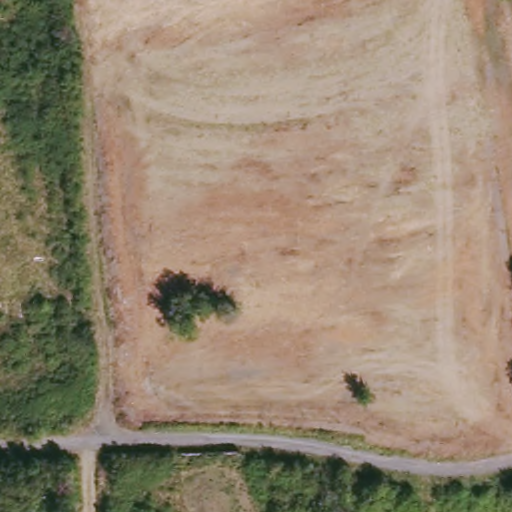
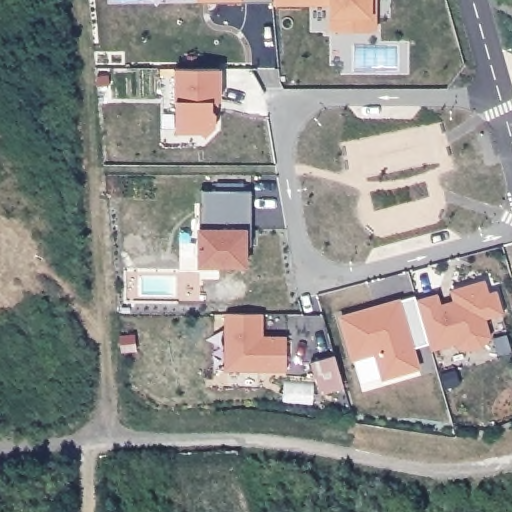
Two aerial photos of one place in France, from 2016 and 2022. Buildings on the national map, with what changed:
new [(225,6),(225,1),(186,5),(186,0),(273,0),(273,1),(225,6)]
new [(273,4),(273,0),(300,0),(300,4),(273,4)]
new [(330,0),(330,4),(300,4),(300,0),(330,0)]
new [(330,30),(330,0),(374,0),(374,30),(330,30)]
new [(216,126),(205,136),(201,132),(175,131),(176,69),(220,69),(220,101),(212,101),(212,110),(216,114),(216,126)]
new [(248,247),(246,270),(196,268),(196,213),(203,213),(203,193),(248,194),(248,247)]
new [(489,337),(481,345),(468,348),(457,346),(456,342),(430,349),(416,301),(436,295),(440,306),(444,304),(445,309),(456,306),(451,291),(484,281),(487,294),(495,292),(501,312),(483,318),(489,337)]
new [(423,326),(408,330),(418,368),(382,378),(375,352),(353,359),(341,317),(374,307),(375,312),(382,310),(380,306),(415,296),(423,326)]
new [(287,371),(226,370),(226,314),(262,314),(262,340),(270,341),(270,338),(287,338),(287,371)]
new [(343,384),(319,391),(310,362),(335,355),(343,384)]

